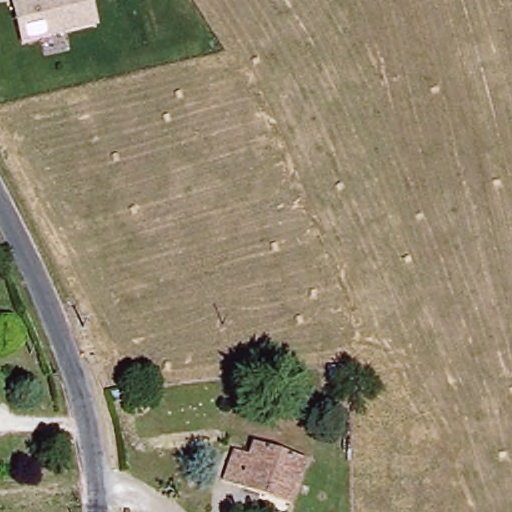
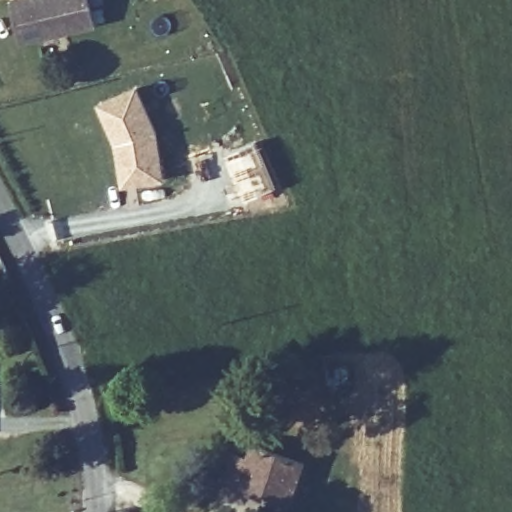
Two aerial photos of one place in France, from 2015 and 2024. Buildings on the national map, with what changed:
unchanged [(21,45),(9,0),(92,0),(97,27),(21,45)]
new [(139,84),(158,128),(167,180),(122,187),(114,145),(97,100),(139,84)]
new [(258,141),(277,186),(246,200),(226,155),(258,141)]
unchanged [(287,502),(225,478),(235,451),(249,456),(254,443),(302,461),(287,502)]

